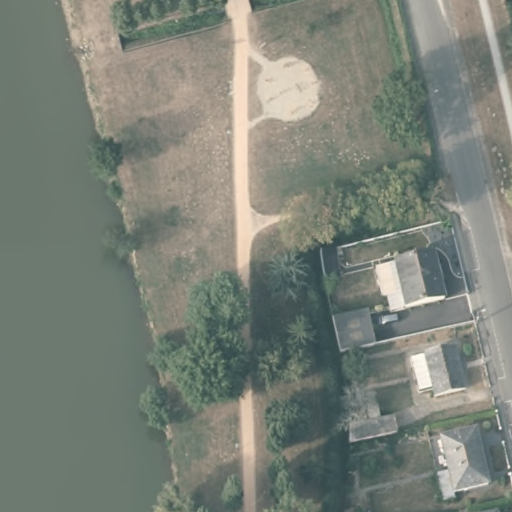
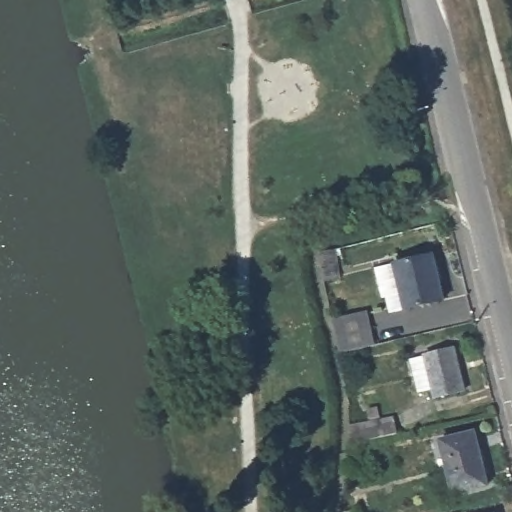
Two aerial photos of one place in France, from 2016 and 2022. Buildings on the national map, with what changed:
unchanged [(330,244),(333,273),(320,275),(319,246),(330,244)]
unchanged [(405,306),(394,259),(433,250),(444,296),(405,306)]
unchanged [(344,356),(343,343),(336,316),(369,311),(377,347),(344,356)]
unchanged [(438,394),(437,386),(424,389),(416,353),(461,343),(471,386),(438,394)]
unchanged [(349,423),(394,413),(399,442),(383,445),(381,436),(364,440),(353,443),(349,423)]
unchanged [(453,489),(441,436),(474,428),(487,481),(453,489)]

